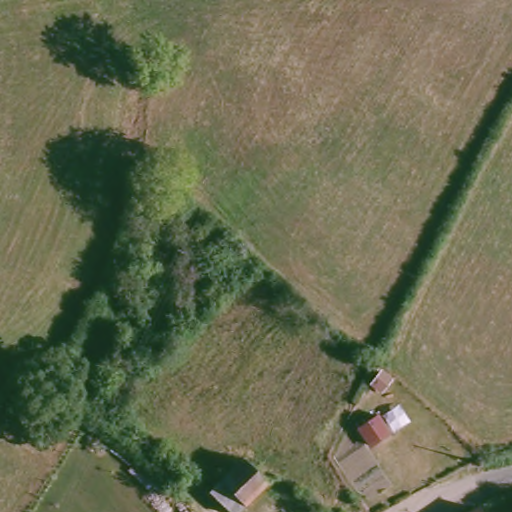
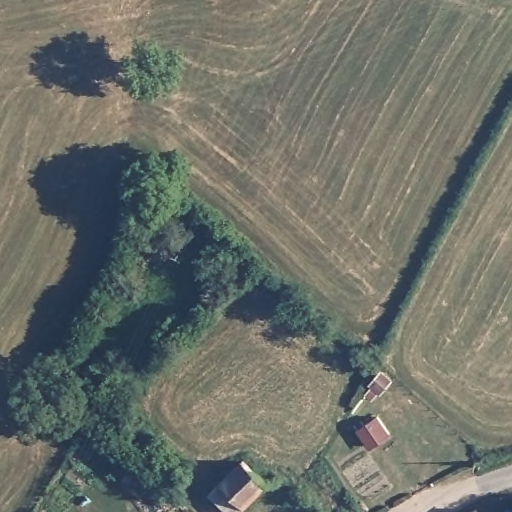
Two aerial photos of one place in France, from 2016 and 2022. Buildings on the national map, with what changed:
unchanged [(358,430),(380,415),(383,417),(397,406),(411,424),(370,449),(358,430)]
unchanged [(203,490),(240,457),(264,486),(231,512),(222,512),(206,492),(203,490)]
unchanged [(475,503),(481,512),(462,512),(475,503)]

